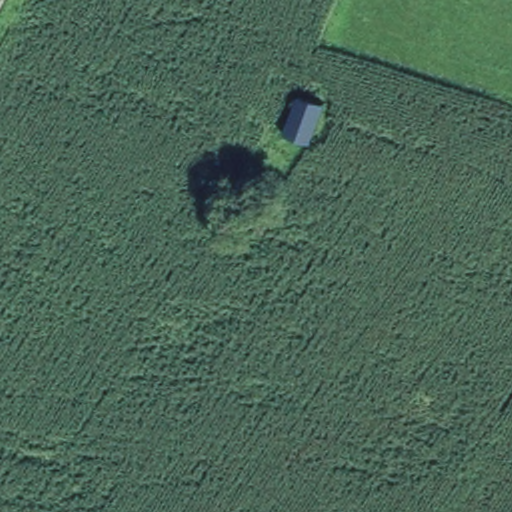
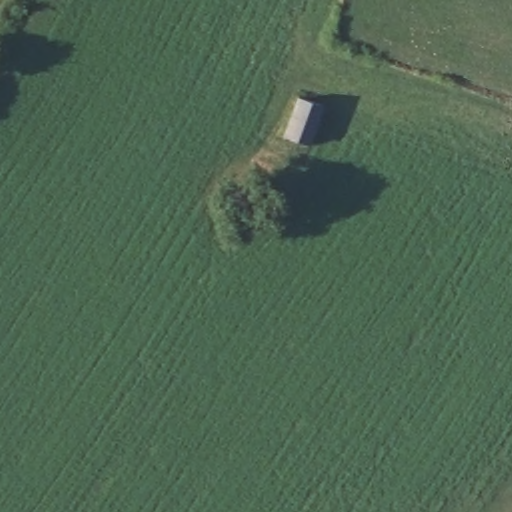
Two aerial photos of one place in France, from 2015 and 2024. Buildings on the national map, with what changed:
unchanged [(306,141),(279,135),(297,95),(322,103),(306,141)]

